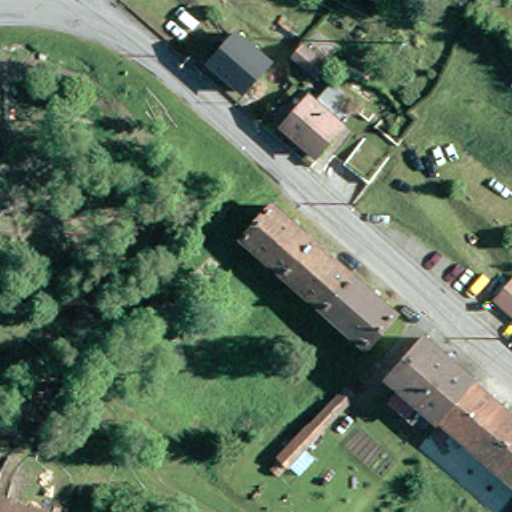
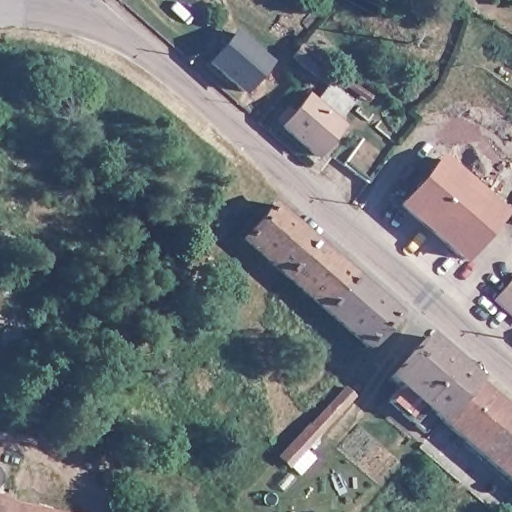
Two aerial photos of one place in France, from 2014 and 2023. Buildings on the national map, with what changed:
demolished [(292,32),(285,40),(275,32),(282,23),(292,32)]
unchanged [(273,60),(245,94),(212,63),(239,31),(273,60)]
unchanged [(318,74),(310,67),(300,57),(293,51),(310,32),(316,37),(328,47),(337,54),(318,74)]
unchanged [(340,131),(312,162),(273,128),(285,113),(290,117),(305,98),(312,105),(327,88),(348,106),(334,122),(334,126),(340,131)]
new [(367,140),(391,160),(370,186),(346,166),(367,140)]
new [(442,159),(502,211),(462,256),(402,204),(442,159)]
unchanged [(398,314),(367,347),(245,239),(275,206),(398,314)]
unchanged [(512,284),(512,314),(497,300),(512,284)]
unchanged [(175,309),(155,334),(140,322),(151,310),(145,305),(157,292),(175,309)]
unchanged [(440,419),(392,377),(427,338),(473,379),(440,419)]
unchanged [(280,457),(350,386),(347,382),(368,359),(376,366),(383,372),(360,396),(359,394),(289,466),(285,462),(280,457)]
unchanged [(512,413),(512,470),(506,477),(440,419),(473,379),(512,413)]
unchanged [(512,470),(512,482),(506,477),(512,470)]
unchanged [(14,512),(0,512),(0,509),(14,512)]

